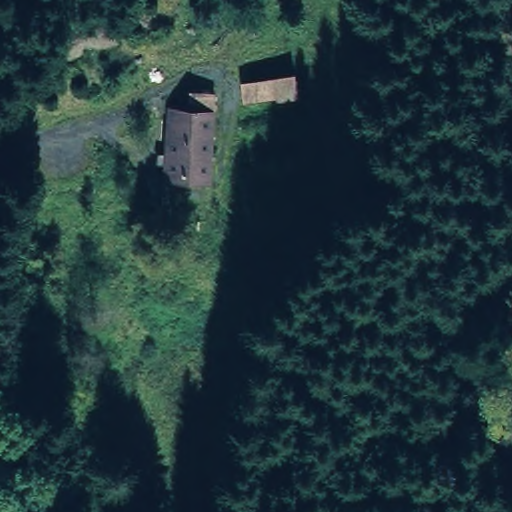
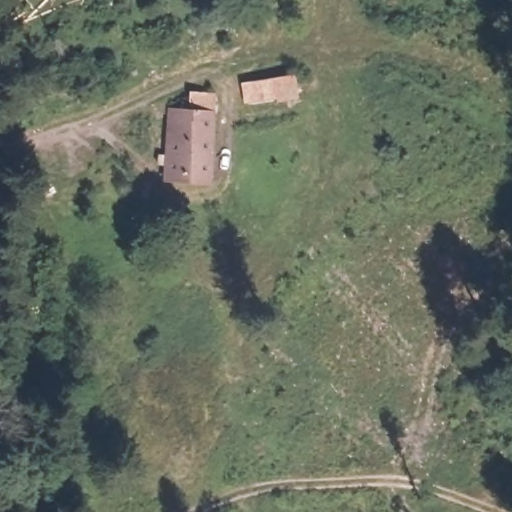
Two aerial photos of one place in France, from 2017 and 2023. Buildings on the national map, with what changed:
unchanged [(232,75),(289,69),(293,95),(234,105),(232,75)]
unchanged [(198,112),(198,95),(220,96),(213,180),(175,178),(181,110),(198,112)]

